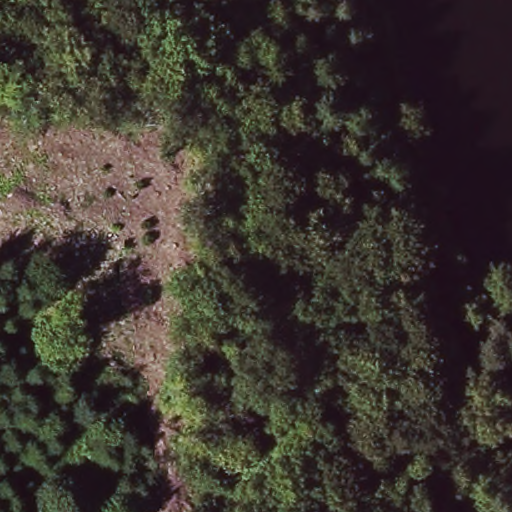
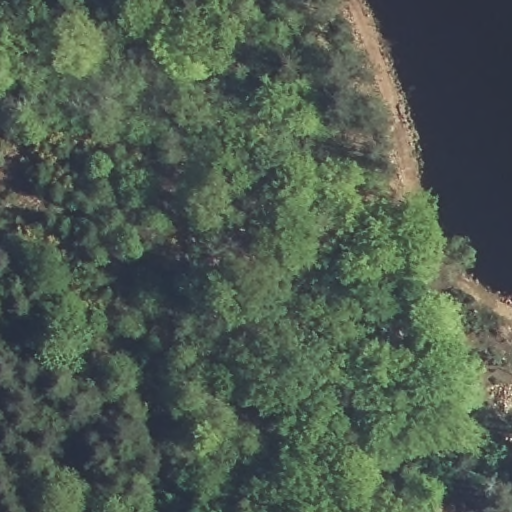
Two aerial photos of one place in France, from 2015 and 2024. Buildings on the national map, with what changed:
[]

